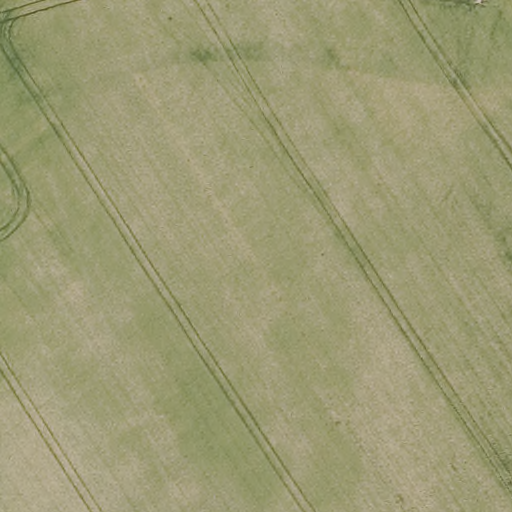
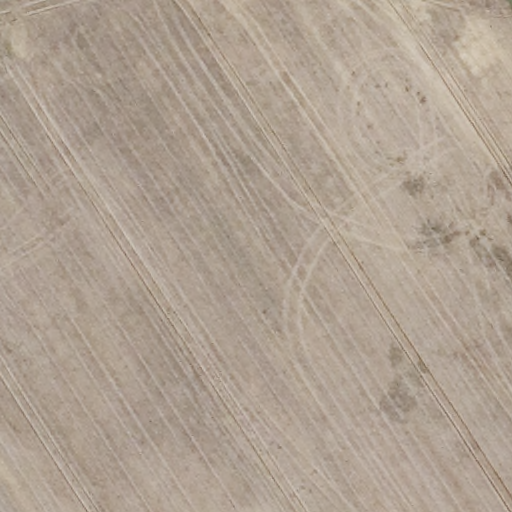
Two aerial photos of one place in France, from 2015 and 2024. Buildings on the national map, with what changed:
[]

